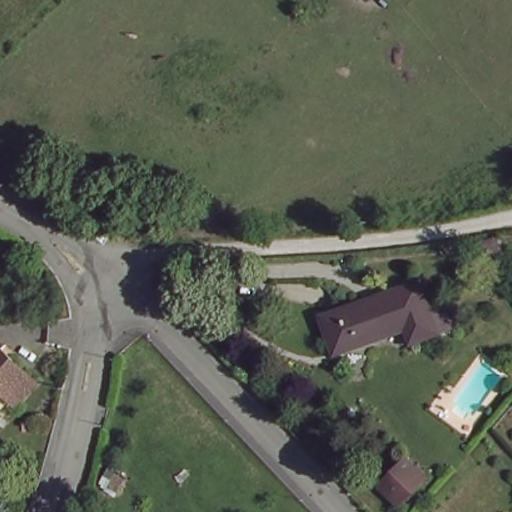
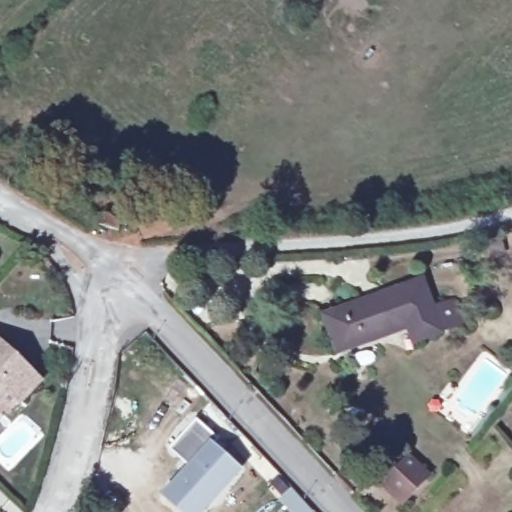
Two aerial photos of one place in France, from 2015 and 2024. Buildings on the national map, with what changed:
unchanged [(435,327),(410,337),(406,326),(334,352),(322,314),(417,280),(435,327)]
unchanged [(24,408),(7,393),(0,400),(0,349),(42,388),(24,408)]
new [(175,512),(159,498),(187,465),(169,449),(195,420),(216,439),(211,443),(240,469),(201,512),(175,512)]
unchanged [(423,478),(403,501),(380,483),(400,460),(423,478)]

